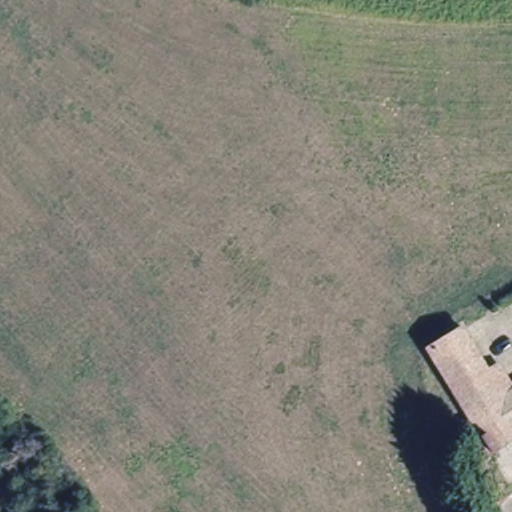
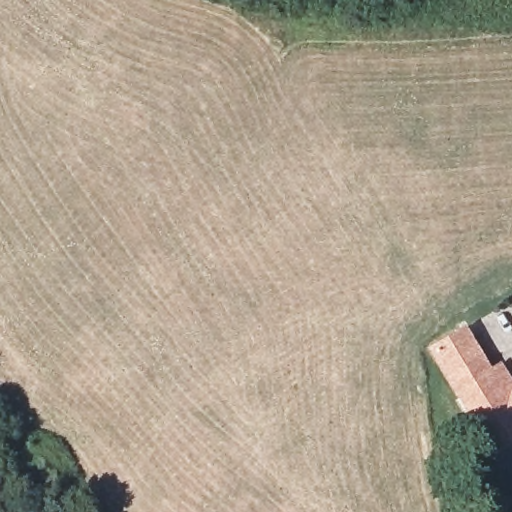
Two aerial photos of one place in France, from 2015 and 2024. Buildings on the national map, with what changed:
unchanged [(420,340),(452,320),(489,374),(496,368),(509,384),(512,382),(512,432),(489,446),(420,340)]

